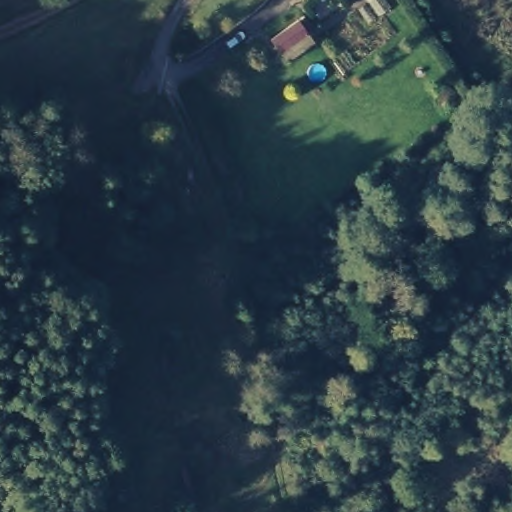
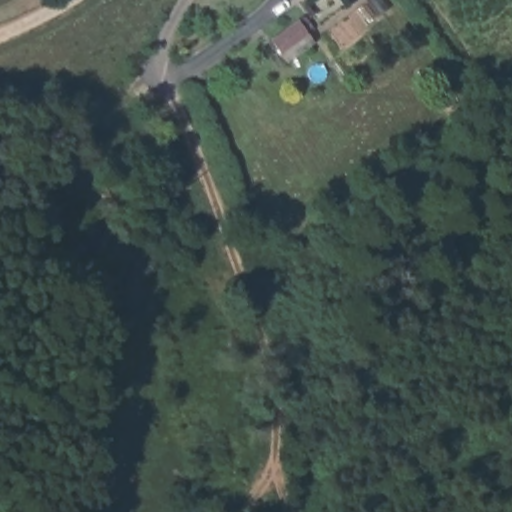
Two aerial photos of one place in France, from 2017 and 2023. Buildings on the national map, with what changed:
unchanged [(279,55),(268,37),(295,19),(306,37),(279,55)]

